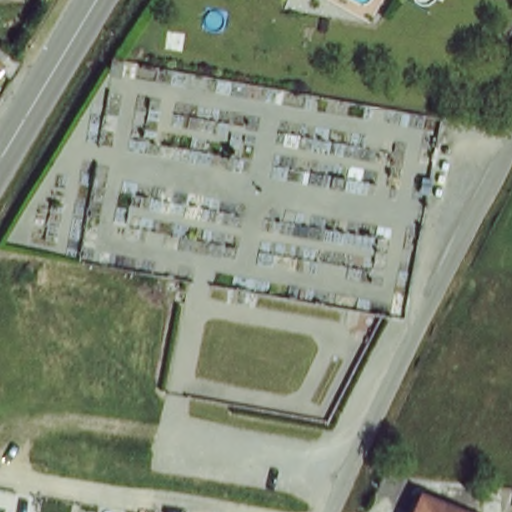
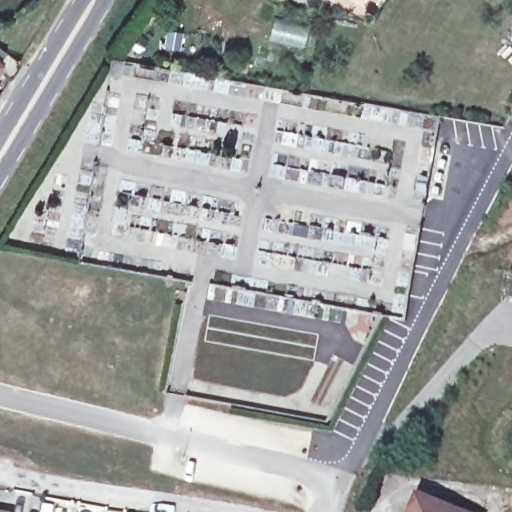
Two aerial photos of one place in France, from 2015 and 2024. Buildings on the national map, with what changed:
unchanged [(13,84),(0,73),(0,47),(24,67),(13,84)]
unchanged [(431,498),(465,512),(425,512),(431,498)]

